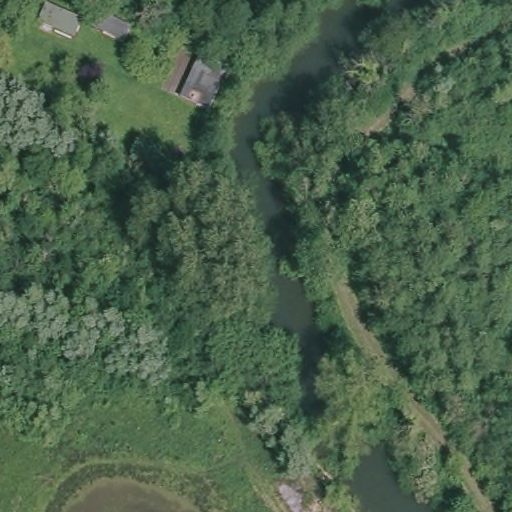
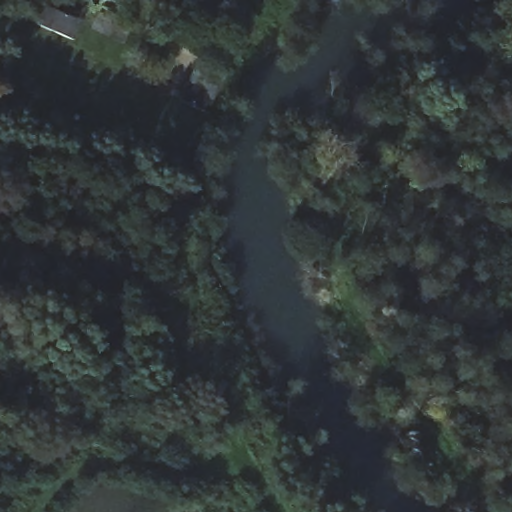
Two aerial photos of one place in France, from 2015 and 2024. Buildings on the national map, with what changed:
unchanged [(197,55),(229,70),(215,95),(185,81),(197,55)]

